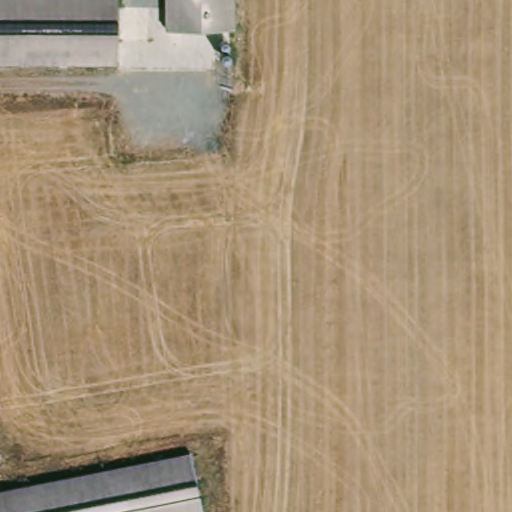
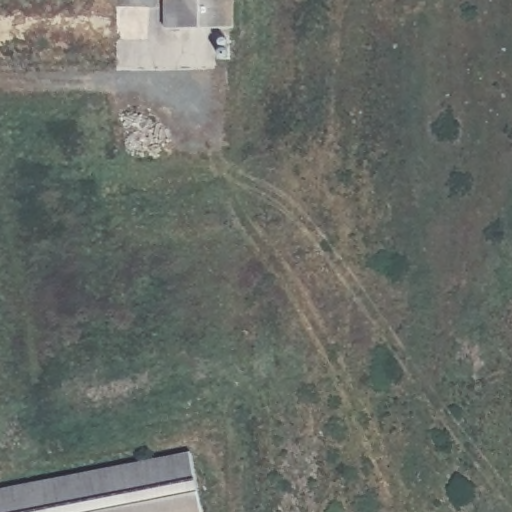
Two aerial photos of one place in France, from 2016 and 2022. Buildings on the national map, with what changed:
demolished [(0,59),(0,0),(119,0),(119,59),(0,59)]
unchanged [(240,0),(240,30),(167,27),(167,0),(240,0)]
unchanged [(194,457),(204,512),(0,512),(0,490),(91,475),(194,457)]

